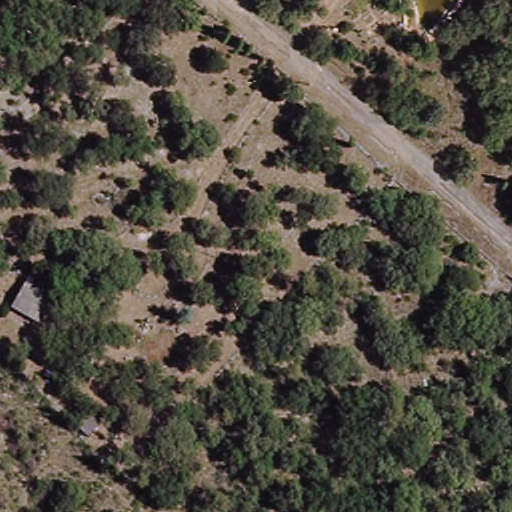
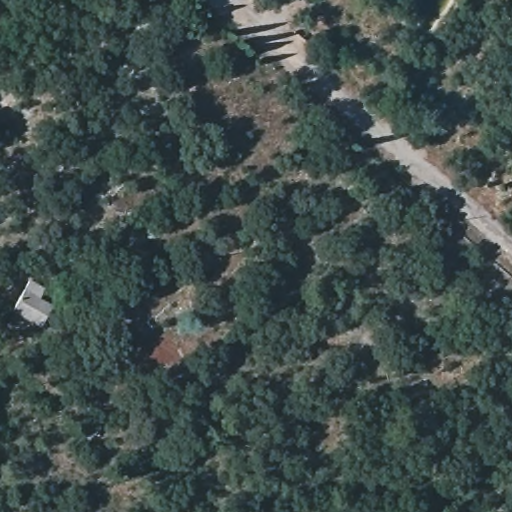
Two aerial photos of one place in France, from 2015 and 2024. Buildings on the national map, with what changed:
unchanged [(51,299),(44,323),(14,314),(25,288),(51,299)]

